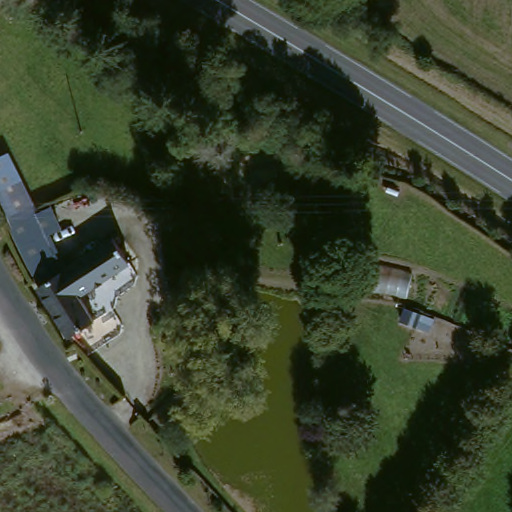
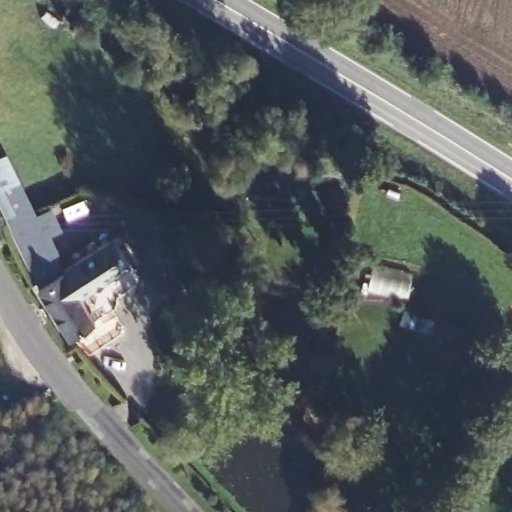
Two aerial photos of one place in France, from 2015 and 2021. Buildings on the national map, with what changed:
unchanged [(27,207),(5,156),(13,153),(39,211),(54,204),(64,227),(53,234),(66,267),(35,285),(9,215),(27,207)]
unchanged [(0,197),(0,158),(5,156),(27,207),(9,215),(0,197)]
unchanged [(91,292),(82,298),(99,322),(75,340),(40,293),(74,267),(112,240),(129,262),(91,292)]
unchanged [(418,272),(412,296),(369,283),(376,258),(418,272)]

